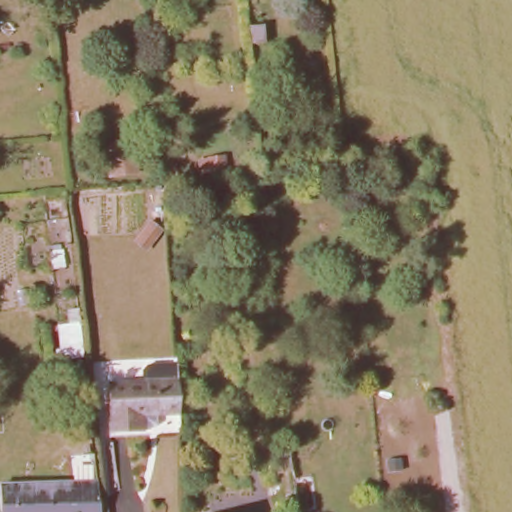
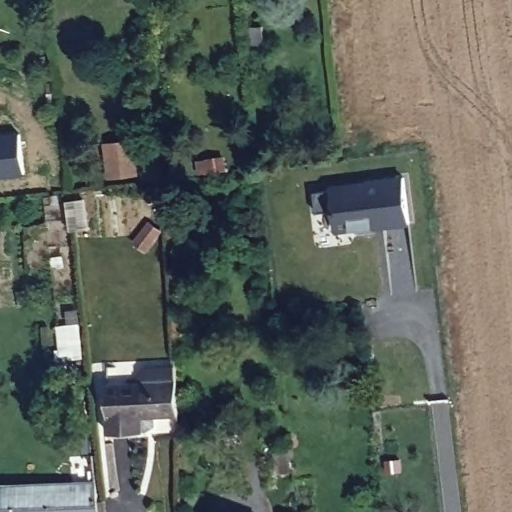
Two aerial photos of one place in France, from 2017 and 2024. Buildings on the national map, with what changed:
new [(25,175),(0,177),(0,133),(20,132),(25,175)]
unchanged [(136,136),(143,180),(107,183),(100,142),(136,136)]
new [(383,227),(382,226),(337,231),(335,211),(317,212),(315,192),(332,189),(332,187),(367,184),(367,182),(404,178),(410,224),(383,227)]
unchanged [(172,365),(173,397),(137,400),(138,415),(112,416),(110,367),(172,365)]
unchanged [(0,484),(90,482),(93,512),(0,512),(0,484)]

